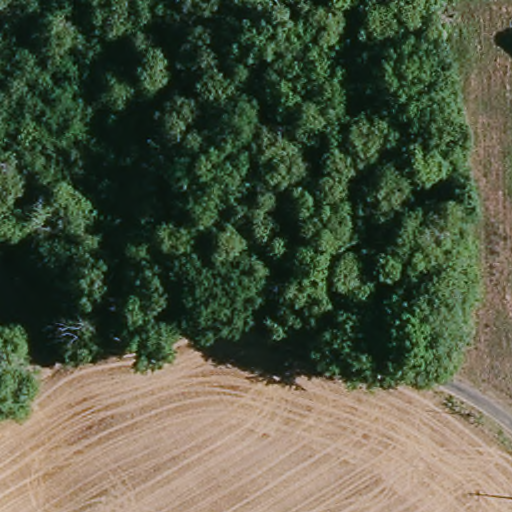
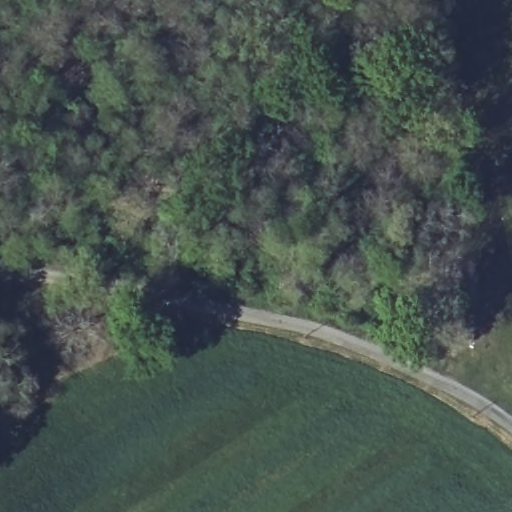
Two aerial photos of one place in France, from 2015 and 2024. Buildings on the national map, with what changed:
[]

